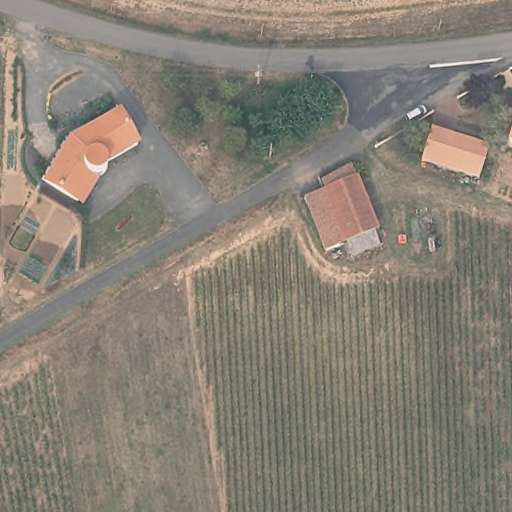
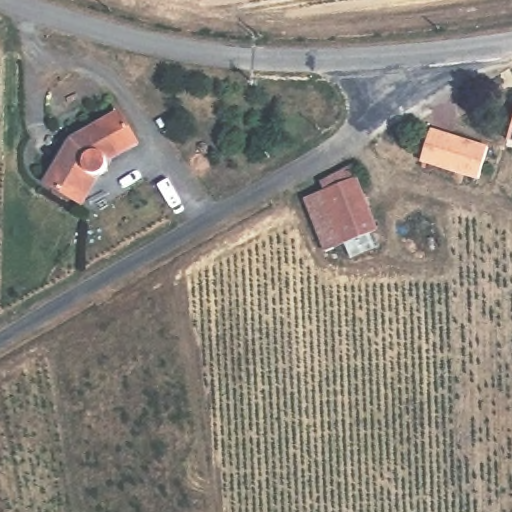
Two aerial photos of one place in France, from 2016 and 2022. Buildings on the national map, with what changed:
unchanged [(141,144),(111,162),(111,164),(110,171),(106,176),(101,178),(84,209),(44,184),(69,143),(120,111),(141,144)]
unchanged [(507,139),(512,124),(512,140),(507,139)]
unchanged [(488,147),(478,177),(422,157),(432,128),(488,147)]
unchanged [(353,242),(348,227),(341,230),(330,234),(309,182),(323,176),(361,161),(380,216),(377,217),(382,231),(353,242)]

